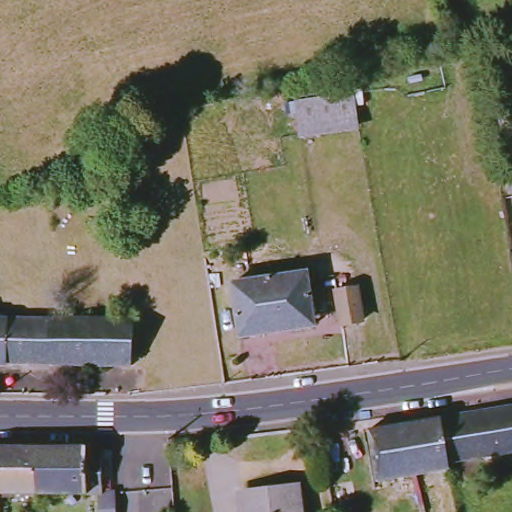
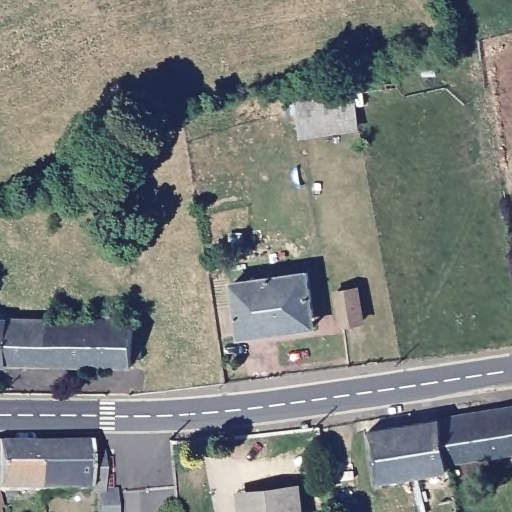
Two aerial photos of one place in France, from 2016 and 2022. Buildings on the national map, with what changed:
unchanged [(359,90),(364,124),(309,131),(304,97),(359,90)]
unchanged [(309,276),(316,328),(241,340),(234,287),(309,276)]
unchanged [(364,324),(344,327),(339,300),(359,296),(364,324)]
unchanged [(1,317),(138,319),(138,341),(148,341),(148,357),(138,357),(138,365),(0,362),(0,306),(1,317)]
unchanged [(447,416),(512,406),(512,453),(454,463),(447,416)]
unchanged [(456,467),(431,471),(423,420),(447,416),(454,463),(456,467)]
unchanged [(431,471),(384,479),(374,428),(423,420),(431,471)]
unchanged [(39,450),(43,496),(2,496),(4,512),(0,512),(0,450),(39,450)]
unchanged [(101,496),(43,496),(39,450),(95,450),(96,457),(106,457),(109,496),(118,496),(119,512),(103,512),(101,496)]
unchanged [(251,490),(304,485),(307,512),(253,512),(251,490)]

